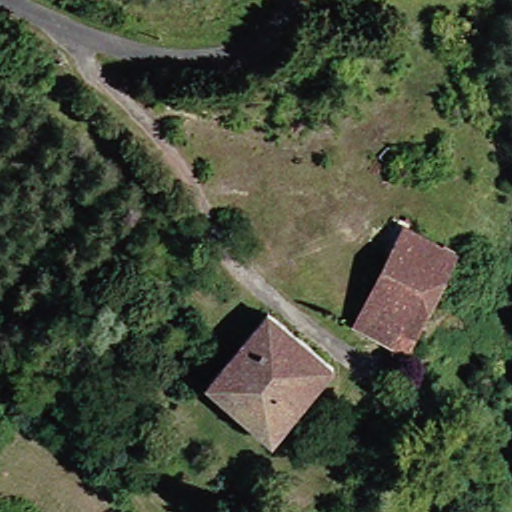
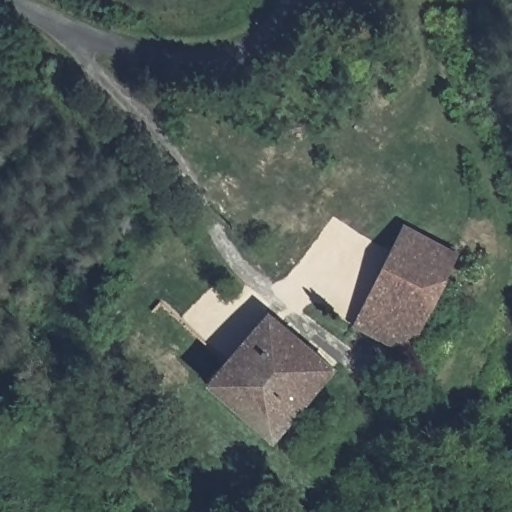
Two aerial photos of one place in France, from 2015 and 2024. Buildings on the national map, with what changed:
unchanged [(407,150),(425,159),(415,180),(398,171),(407,150)]
unchanged [(423,352),(369,325),(412,227),(467,253),(423,352)]
unchanged [(339,368),(281,440),(216,384),(281,312),(339,368)]

